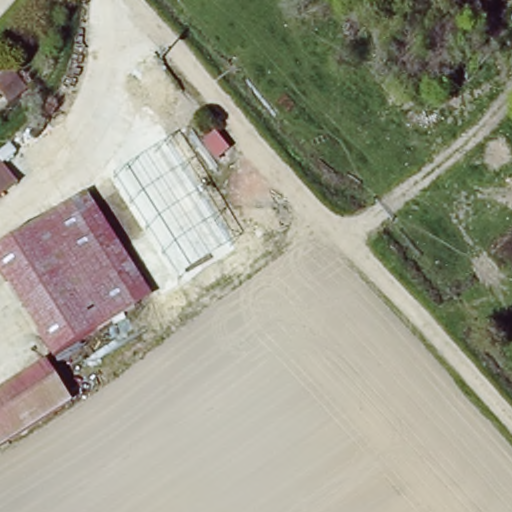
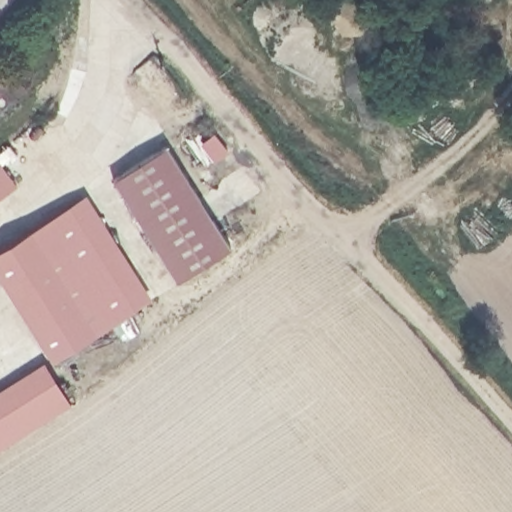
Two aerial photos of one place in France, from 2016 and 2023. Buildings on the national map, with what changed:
unchanged [(0,91),(0,63),(3,61),(17,77),(0,91)]
new [(173,144),(225,226),(175,266),(119,177),(173,144)]
unchanged [(0,182),(0,164),(9,176),(0,182)]
unchanged [(19,191),(0,205),(0,182),(9,176),(19,191)]
unchanged [(149,302),(71,355),(5,255),(83,205),(149,302)]
new [(225,226),(237,246),(184,280),(175,266),(225,226)]
unchanged [(73,401),(0,455),(0,392),(43,362),(73,401)]

